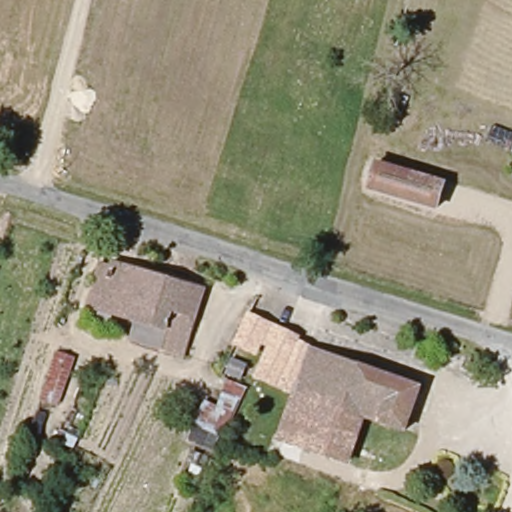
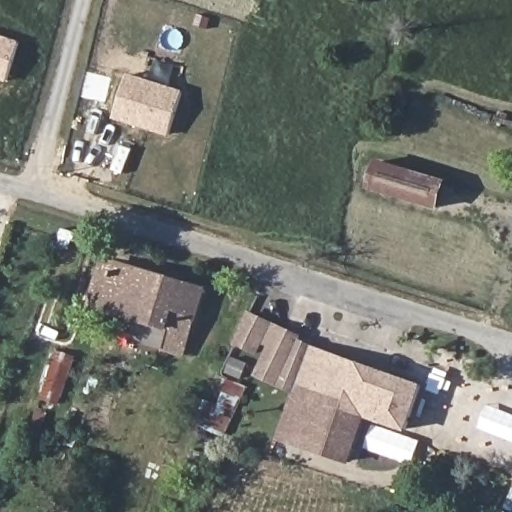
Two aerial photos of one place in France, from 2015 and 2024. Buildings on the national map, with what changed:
new [(0,79),(0,36),(19,43),(6,81),(0,79)]
new [(113,119),(128,73),(183,91),(168,136),(113,119)]
unchanged [(443,189),(433,214),(366,192),(376,166),(443,189)]
unchanged [(114,264),(204,292),(183,357),(159,349),(165,331),(86,306),(99,265),(112,269),(114,264)]
unchanged [(237,312),(272,326),(259,352),(247,347),(244,354),(224,346),(237,312)]
unchanged [(259,352),(272,326),(292,334),(289,341),(425,389),(407,435),(366,419),(323,403),(319,402),(322,392),(299,385),(300,379),(259,364),(254,362),(259,352)]
unchanged [(47,402),(63,353),(77,357),(62,407),(47,402)]
unchanged [(207,402),(216,407),(233,362),(254,373),(219,450),(189,441),(207,402)]
unchanged [(254,373),(259,364),(300,379),(299,385),(322,392),(319,402),(323,403),(366,419),(347,466),(273,441),(291,393),(252,378),(254,373)]

